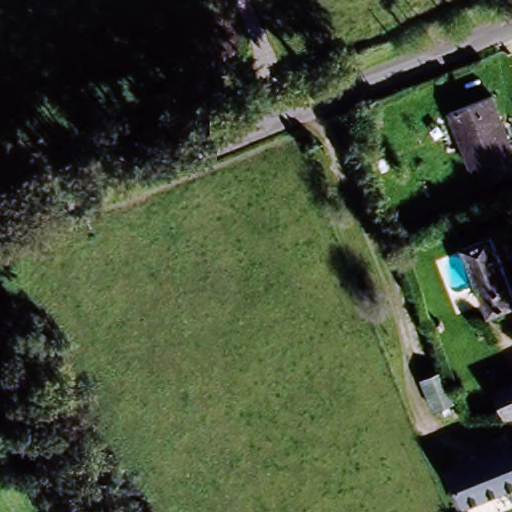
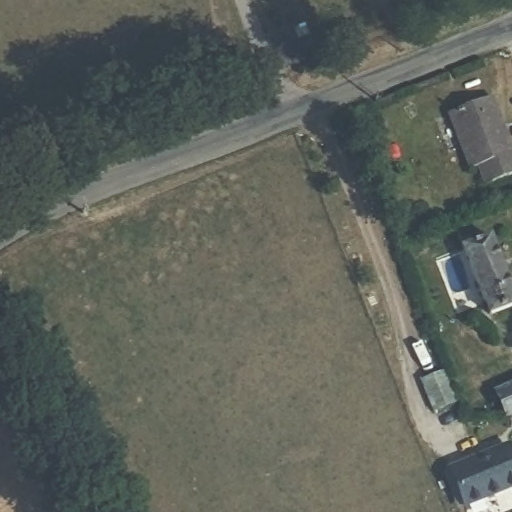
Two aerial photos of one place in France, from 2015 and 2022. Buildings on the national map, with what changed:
unchanged [(512,149),(512,177),(484,190),(448,105),(485,88),(512,149)]
unchanged [(512,300),(512,304),(490,315),(460,250),(485,239),(512,300)]
unchanged [(500,386),(512,380),(512,410),(500,386)]
unchanged [(512,460),(512,472),(462,496),(449,468),(505,442),(512,460)]

